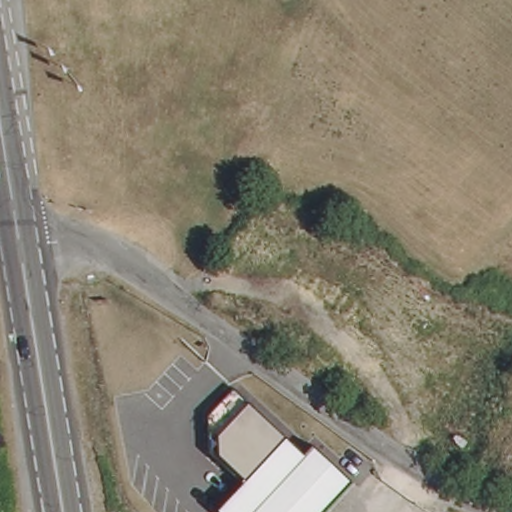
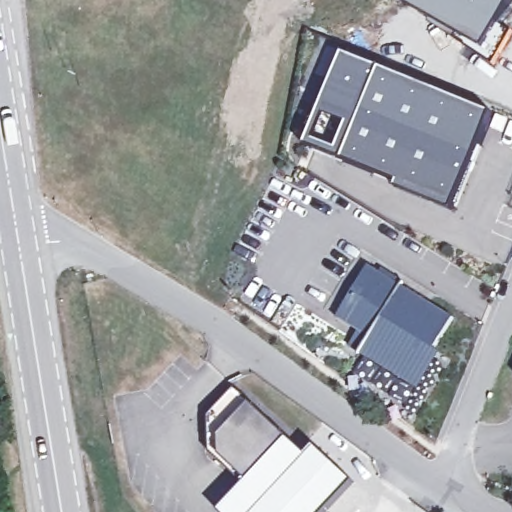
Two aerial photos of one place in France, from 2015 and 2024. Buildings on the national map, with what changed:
new [(512,34),(512,48),(499,70),(460,45),(463,40),(410,10),(415,0),(512,0),(512,17),(505,30),(512,34)]
new [(500,119),(460,217),(403,194),(405,190),(347,166),(385,72),(500,119)]
new [(456,317),(436,348),(441,351),(419,390),(350,347),(360,331),(336,317),(370,266),(456,317)]
unchanged [(219,510),(246,481),(213,458),(207,420),(236,388),(311,457),(317,448),(354,482),(326,512),(221,512),(219,510)]

